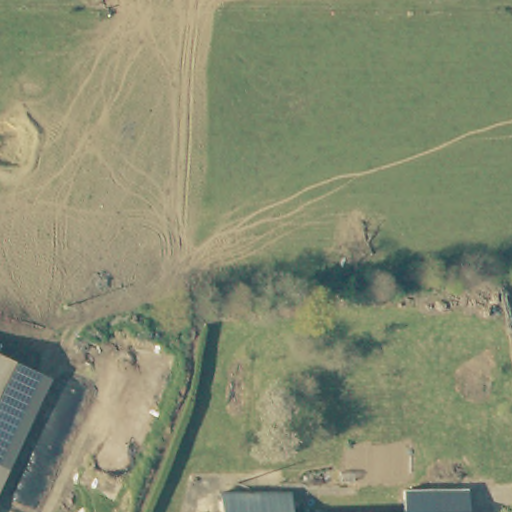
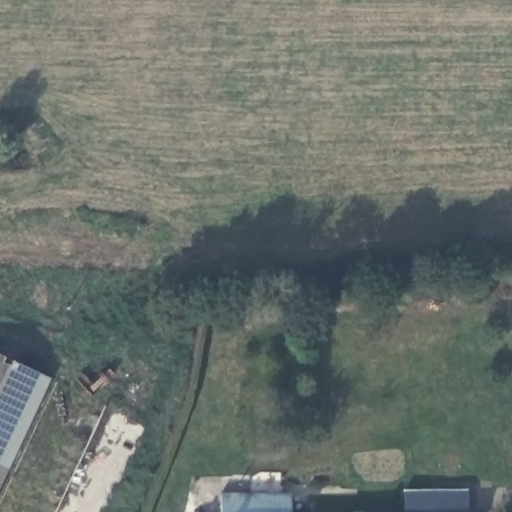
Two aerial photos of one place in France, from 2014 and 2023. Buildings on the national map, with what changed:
unchanged [(49,379),(0,485),(0,356),(49,379)]
unchanged [(405,492),(468,490),(470,511),(407,512),(405,492)]
unchanged [(260,495),(297,494),(298,512),(223,512),(223,495),(260,495)]
unchanged [(407,512),(472,511),(472,512),(407,512)]

